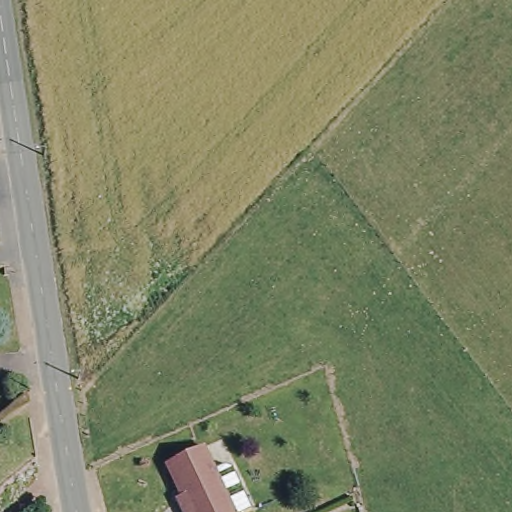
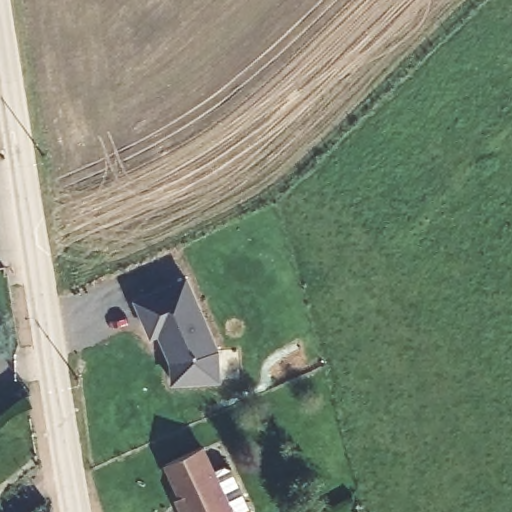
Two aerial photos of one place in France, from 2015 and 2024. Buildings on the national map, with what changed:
new [(216,374),(170,377),(168,356),(156,327),(148,330),(133,294),(182,272),(214,344),(216,374)]
unchanged [(180,509),(185,507),(165,464),(201,447),(232,512),(182,512),(180,509)]

